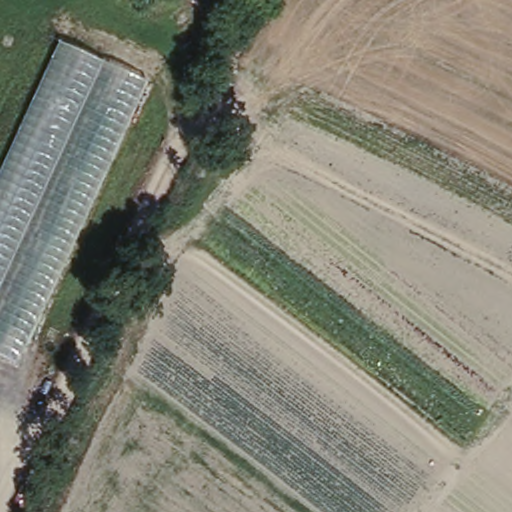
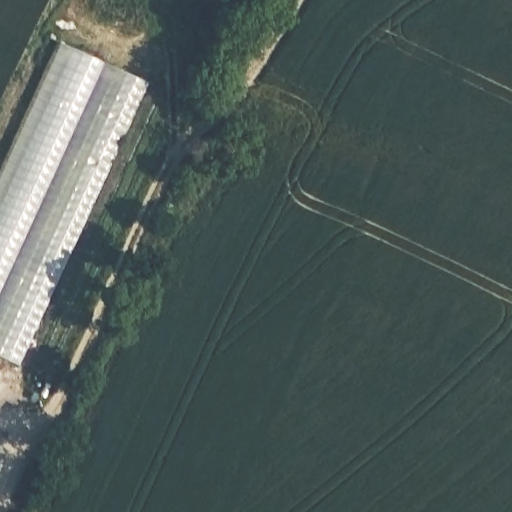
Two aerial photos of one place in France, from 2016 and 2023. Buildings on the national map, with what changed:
unchanged [(147,80),(16,362),(0,356),(0,180),(63,42),(147,80)]

